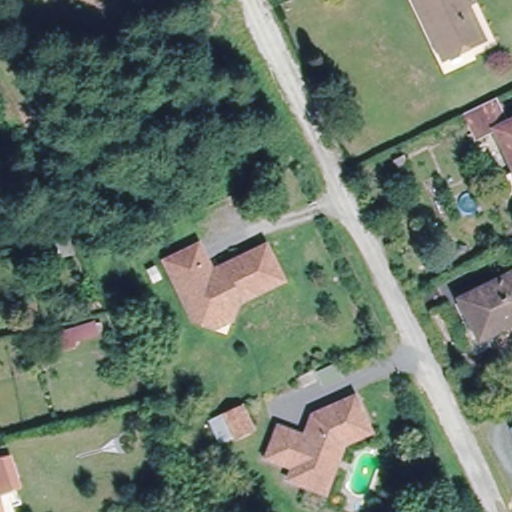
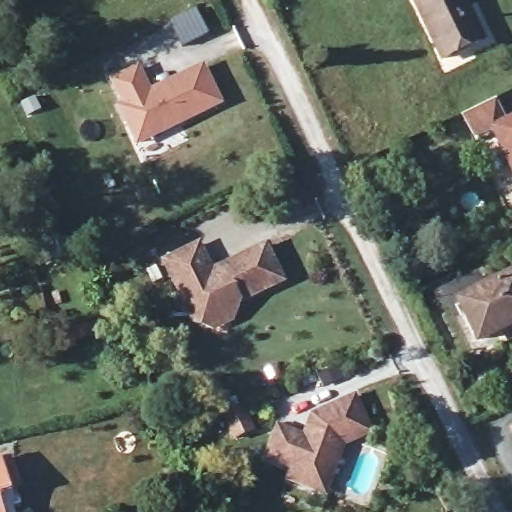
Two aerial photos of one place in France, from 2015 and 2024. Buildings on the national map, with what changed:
unchanged [(446,54),(421,0),(468,0),(484,34),(446,54)]
new [(133,126),(124,108),(129,106),(117,82),(140,71),(147,86),(152,94),(203,70),(220,104),(154,136),(141,142),(133,126)]
new [(35,98),(41,111),(29,116),(22,104),(35,98)]
unchanged [(512,166),(495,130),(481,136),(470,112),(500,98),(512,122),(512,166)]
unchanged [(408,146),(412,155),(402,160),(398,152),(408,146)]
unchanged [(197,330),(185,303),(164,260),(195,244),(205,261),(214,256),(219,265),(261,242),(278,277),(231,300),(221,320),(197,330)]
unchanged [(465,299),(512,276),(512,326),(483,340),(465,299)]
unchanged [(258,424),(242,432),(230,407),(246,399),(258,424)]
unchanged [(317,483),(301,475),(305,465),(286,458),(298,427),(321,436),(324,431),(320,427),(319,421),(358,401),(372,431),(375,436),(350,449),(347,454),(335,489),(317,483)]
unchanged [(5,461),(15,492),(6,495),(5,495),(10,512),(0,512),(0,463),(5,461)]

